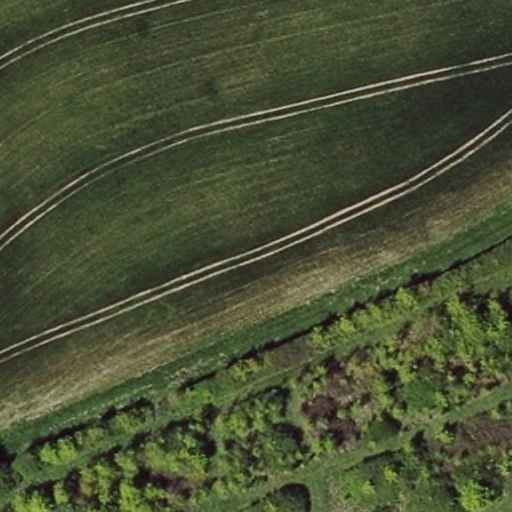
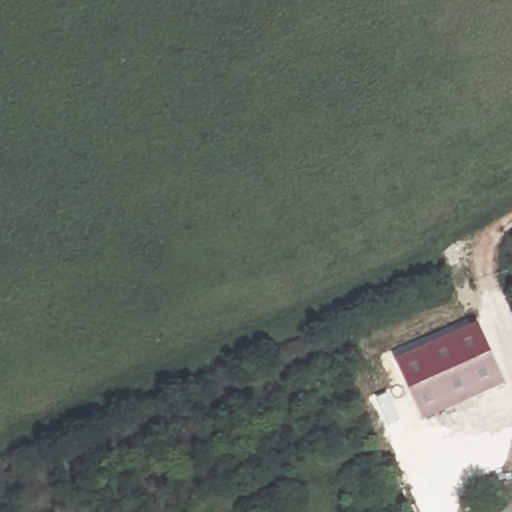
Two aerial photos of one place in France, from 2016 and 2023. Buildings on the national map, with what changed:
new [(477,319),(504,378),(419,416),(392,358),(477,319)]

